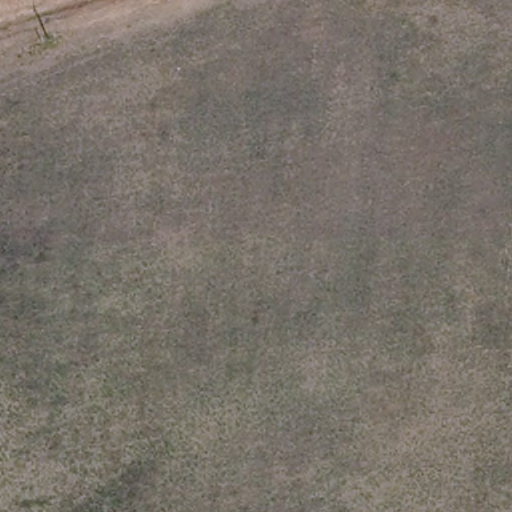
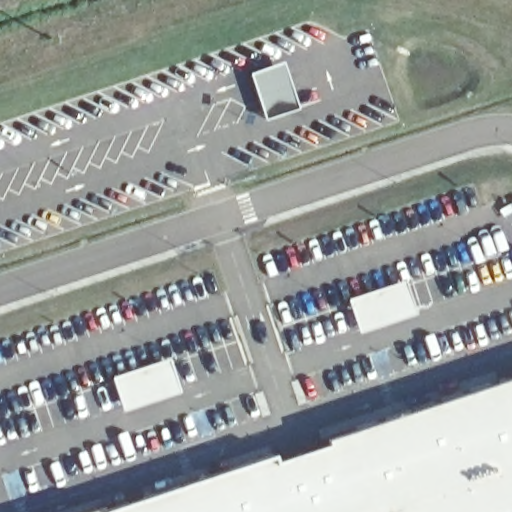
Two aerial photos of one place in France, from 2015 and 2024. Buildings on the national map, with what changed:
new [(252,74),(283,64),(296,108),(265,118),(252,74)]
new [(358,334),(347,300),(404,282),(414,316),(358,334)]
new [(124,412),(113,379),(169,359),(181,392),(124,412)]
new [(275,463),(328,445),(326,441),(512,378),(512,512),(105,512),(273,456),(275,463)]
new [(99,512),(92,512),(98,510),(99,512)]

